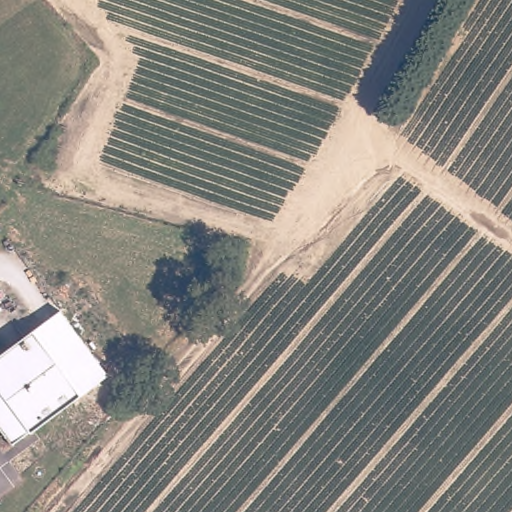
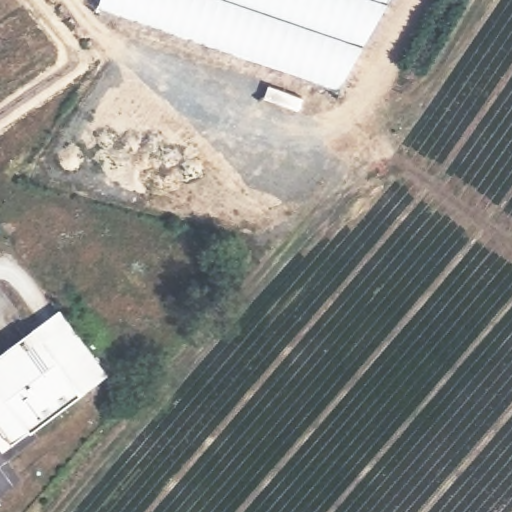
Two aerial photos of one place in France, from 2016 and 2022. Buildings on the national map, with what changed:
new [(100,0),(393,0),(342,89),(98,6),(100,0)]
unchanged [(109,374),(80,395),(32,330),(61,308),(109,374)]
unchanged [(0,432),(0,353),(32,330),(80,395),(10,446),(0,432)]

